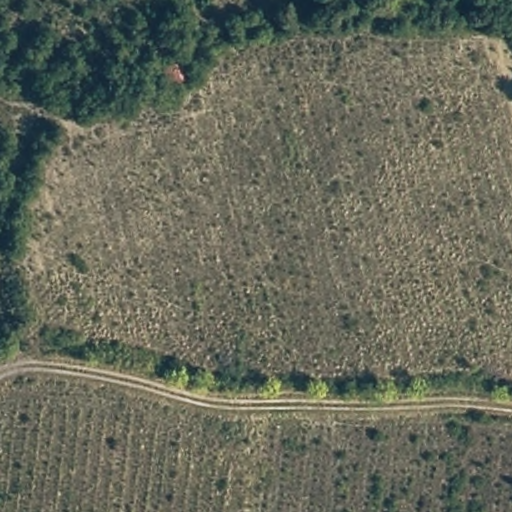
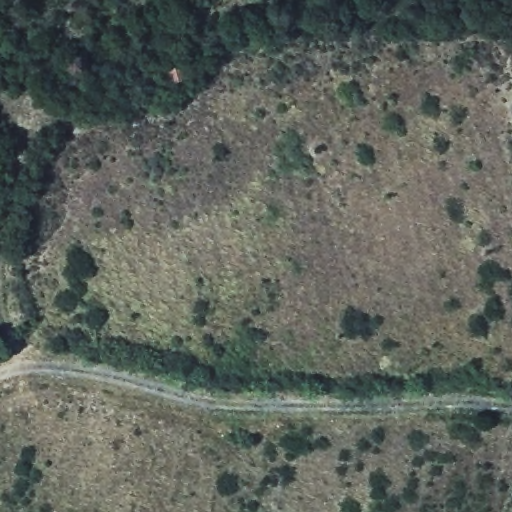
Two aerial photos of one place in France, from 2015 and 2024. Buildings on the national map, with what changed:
unchanged [(157,65),(185,58),(190,77),(164,85),(157,65)]

